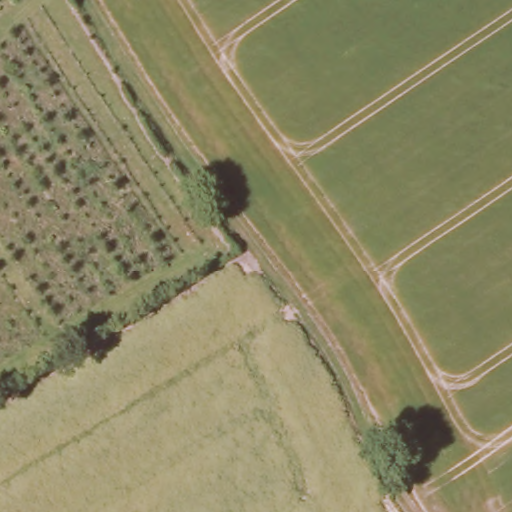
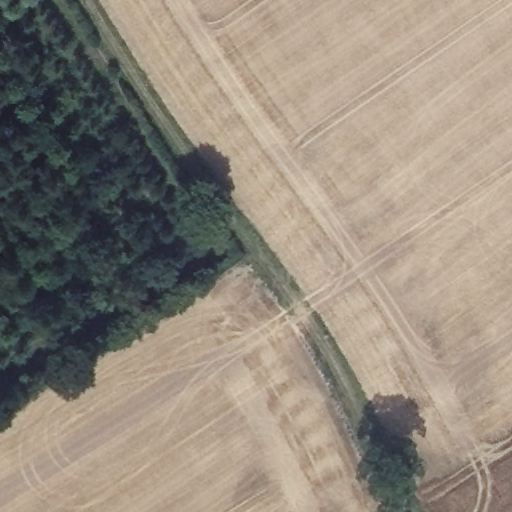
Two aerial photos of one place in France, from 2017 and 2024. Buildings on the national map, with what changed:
[]

